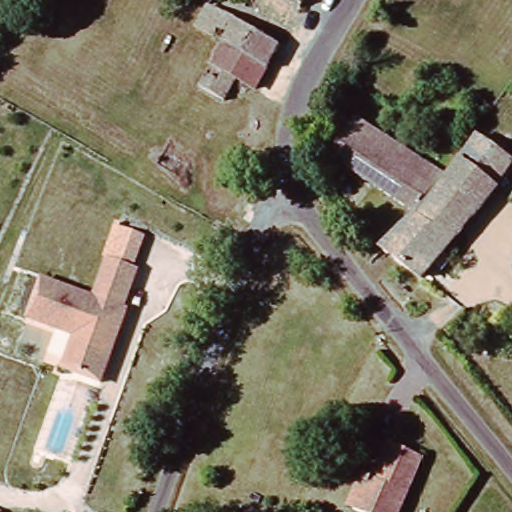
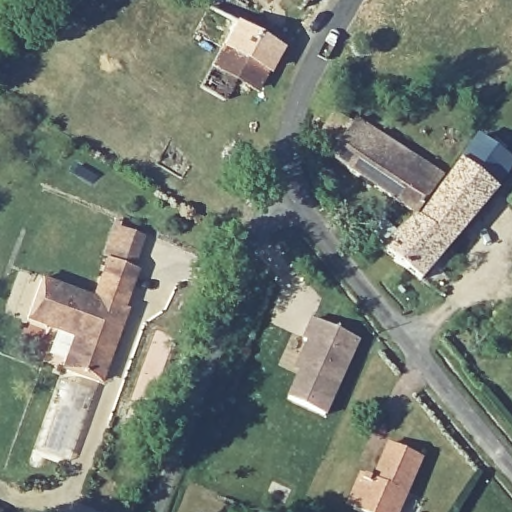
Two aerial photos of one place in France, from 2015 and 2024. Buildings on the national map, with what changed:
unchanged [(282,44),(257,91),(236,79),(226,101),(200,86),(222,44),(196,30),(207,7),(282,44)]
unchanged [(418,220),(417,221),(333,163),(358,124),(447,184),(418,220)]
unchanged [(443,278),(436,271),(423,285),(383,254),(417,221),(423,225),(487,144),(512,162),(512,174),(500,192),(502,194),(447,259),(455,266),(443,278)]
unchanged [(103,381),(102,383),(65,369),(66,366),(77,336),(30,319),(44,279),(96,298),(110,258),(132,267),(140,269),(126,309),(129,310),(120,334),(115,349),(103,381)]
new [(306,364),(303,357),(311,340),(306,338),(315,317),(361,337),(327,413),(291,397),(306,364)]
unchanged [(356,473),(362,476),(370,479),(385,442),(416,456),(392,512),(356,512),(347,508),(341,506),(356,473)]

